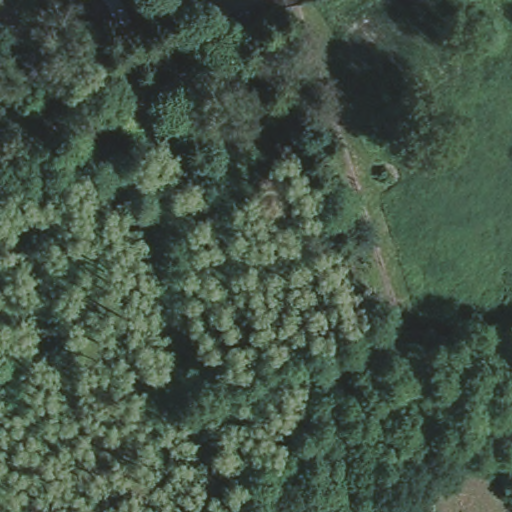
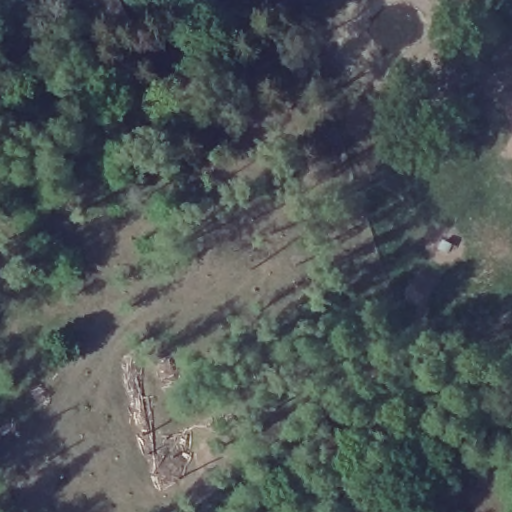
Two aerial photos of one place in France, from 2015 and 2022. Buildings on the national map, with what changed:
unchanged [(119,25),(104,0),(119,0),(130,20),(119,25)]
unchanged [(213,0),(233,0),(215,6),(213,0)]

